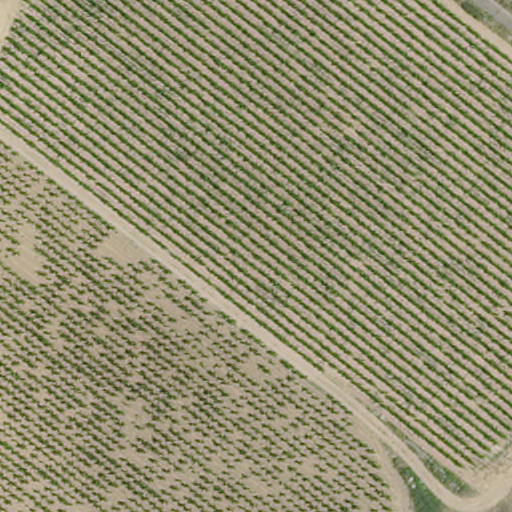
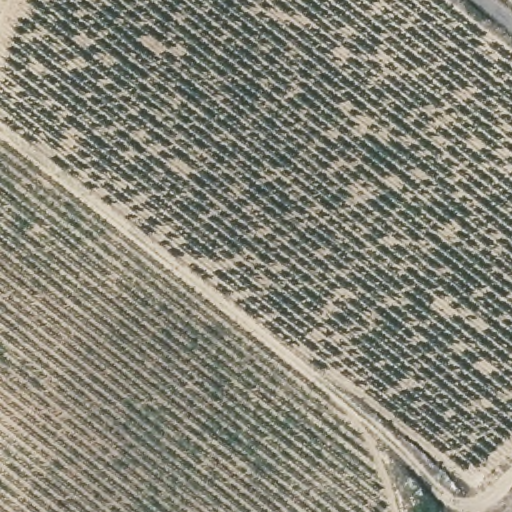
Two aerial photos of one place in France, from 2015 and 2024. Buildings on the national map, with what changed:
[]

